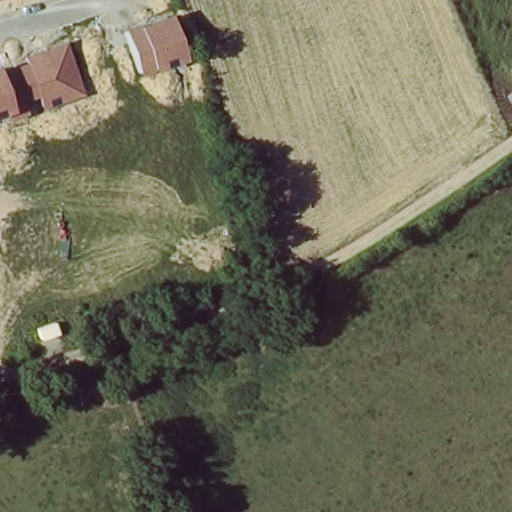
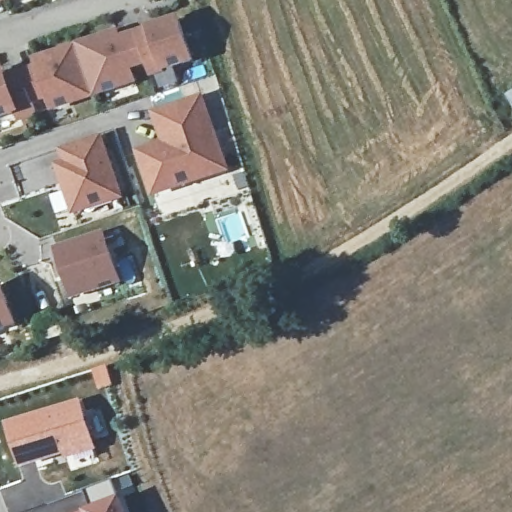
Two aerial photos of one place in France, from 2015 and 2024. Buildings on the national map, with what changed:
unchanged [(5,2),(3,0),(12,0),(5,2)]
unchanged [(197,62),(152,75),(139,30),(181,17),(197,62)]
new [(131,69),(136,84),(94,97),(77,45),(118,29),(120,36),(139,30),(149,65),(131,69)]
unchanged [(94,97),(51,113),(47,101),(35,105),(37,116),(17,121),(14,116),(0,120),(0,70),(7,68),(11,76),(37,65),(35,57),(77,45),(94,97)]
unchanged [(508,96),(512,93),(512,102),(508,96)]
new [(162,142),(151,112),(204,94),(230,172),(153,198),(137,151),(162,142)]
new [(55,163),(63,161),(59,151),(102,136),(124,198),(72,216),(55,163)]
new [(105,231),(123,282),(73,300),(55,248),(105,231)]
new [(2,282),(19,327),(0,333),(0,282),(2,282)]
new [(80,400),(98,450),(65,460),(64,456),(21,469),(6,423),(80,400)]
new [(92,510),(84,491),(112,480),(120,498),(122,497),(128,512),(84,512),(86,512),(92,510)]

